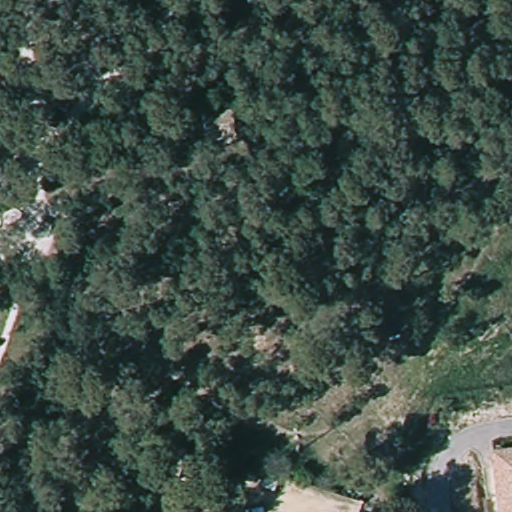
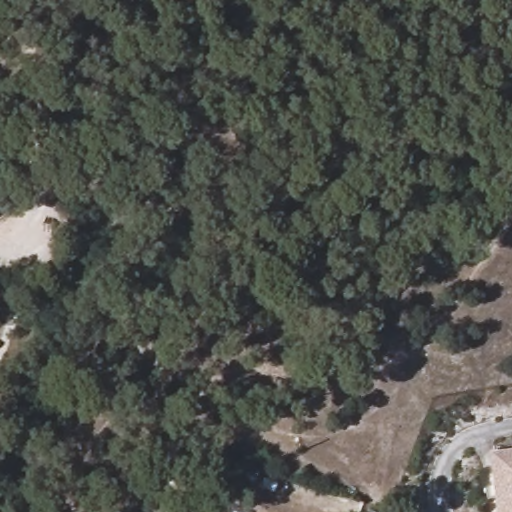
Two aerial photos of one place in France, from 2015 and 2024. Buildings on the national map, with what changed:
unchanged [(230,117),(235,142),(204,147),(200,122),(230,117)]
unchanged [(512,451),(512,512),(495,512),(488,453),(512,451)]

